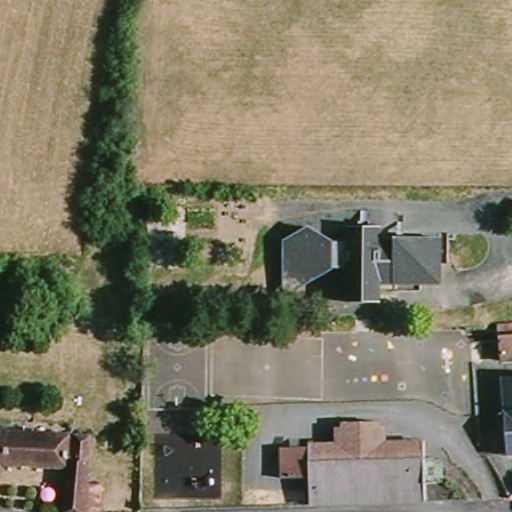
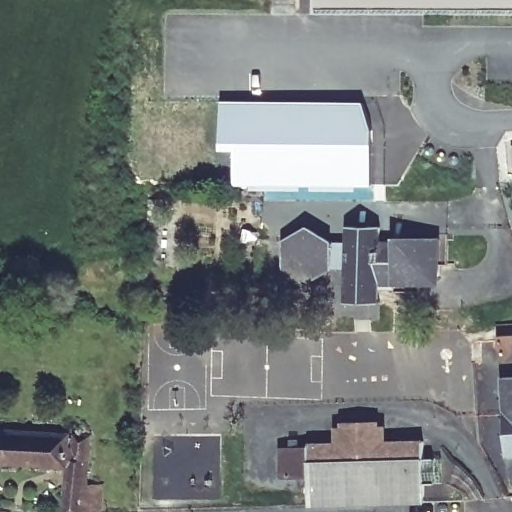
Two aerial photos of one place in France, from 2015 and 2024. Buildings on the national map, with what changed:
new [(317,0),(512,0),(512,4),(317,7),(317,0)]
new [(168,14),(193,14),(192,94),(167,94),(168,14)]
new [(220,100),(363,101),(373,136),(373,188),(357,189),(357,193),(283,193),(233,187),(233,151),(219,150),(220,100)]
unchanged [(345,310),(345,303),(345,293),(345,272),(335,272),(285,302),(284,245),(306,232),(320,243),(344,245),(344,228),(378,230),(378,240),(447,240),(446,266),(439,266),(437,285),(422,284),(421,295),(398,295),(398,289),(379,291),(380,302),(380,308),(345,310)]
unchanged [(512,325),(512,361),(503,362),(503,354),(503,337),(502,326),(512,325)]
unchanged [(46,340),(33,339),(34,330),(47,331),(46,340)]
demolished [(498,363),(481,364),(472,368),(472,359),(480,356),(497,355),(498,363)]
unchanged [(512,378),(512,428),(510,378),(512,378)]
unchanged [(423,491),(423,503),(309,505),(308,479),(281,478),(279,447),(309,447),(309,442),(342,442),(344,428),(353,423),(379,424),(390,432),(391,442),(422,442),(423,460),(446,459),(446,490),(423,491)]
unchanged [(69,436),(68,450),(74,450),(76,437),(91,438),(89,468),(87,484),(101,486),(99,512),(62,512),(66,470),(0,464),(0,430),(69,436)]

